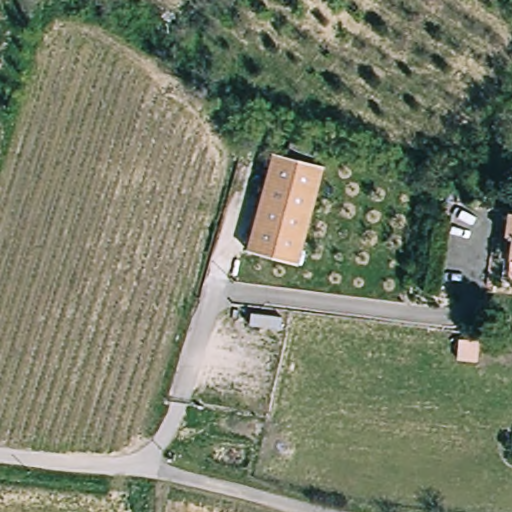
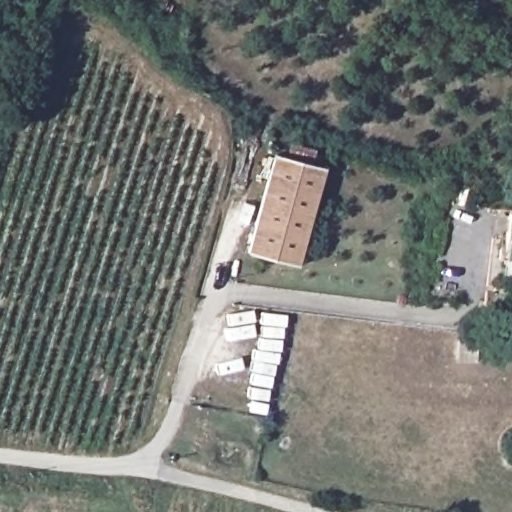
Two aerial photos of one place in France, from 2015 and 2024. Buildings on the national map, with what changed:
unchanged [(301,263),(248,250),(275,147),(328,161),(301,263)]
unchanged [(505,252),(512,218),(512,253),(505,252)]

